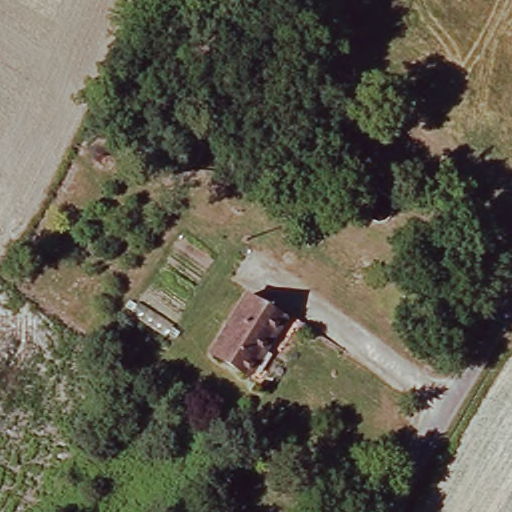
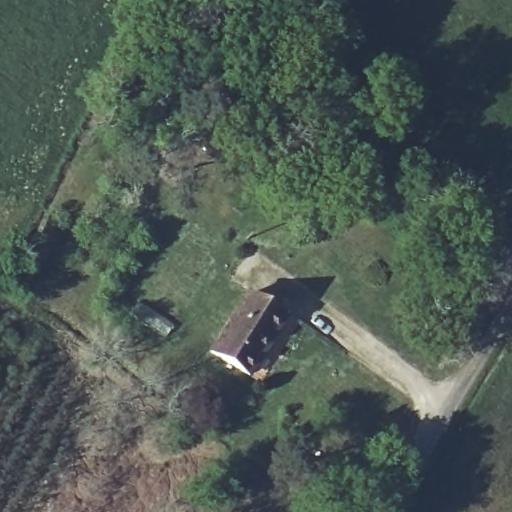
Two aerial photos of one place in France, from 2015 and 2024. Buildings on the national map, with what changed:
unchanged [(270,316),(275,311),(288,321),(247,383),(199,350),(235,294),(270,316)]

